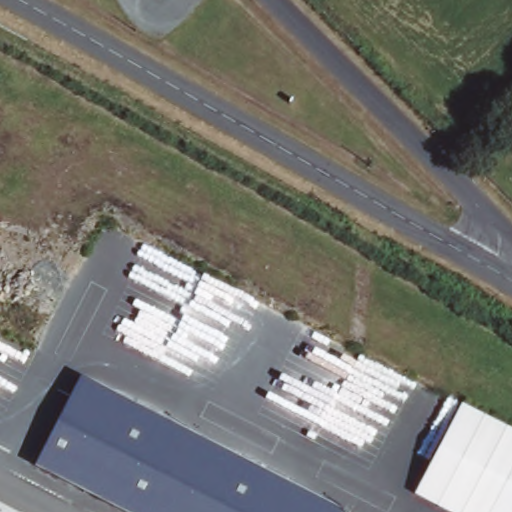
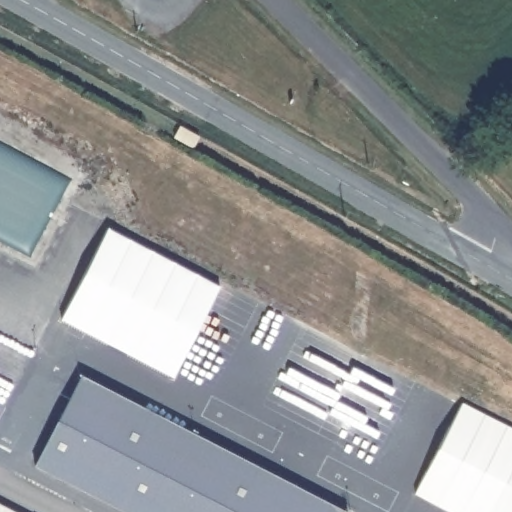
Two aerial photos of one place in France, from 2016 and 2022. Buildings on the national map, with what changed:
new [(106,228),(219,285),(173,376),(60,318),(106,228)]
unchanged [(349,512),(123,512),(35,467),(82,373),(350,510),(349,512)]
unchanged [(512,429),(512,512),(447,512),(412,494),(461,403),(512,429)]
unchanged [(0,505),(13,512),(0,512),(0,505)]

